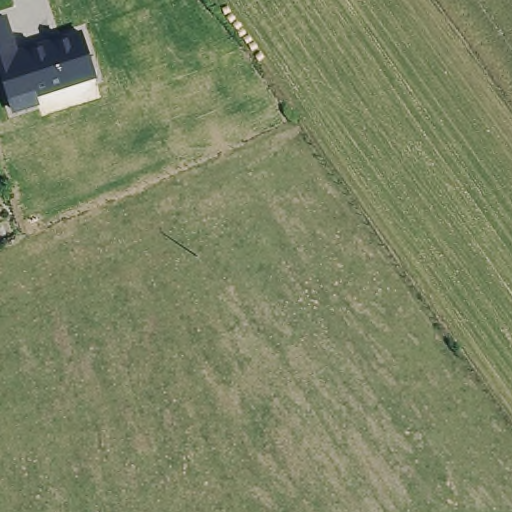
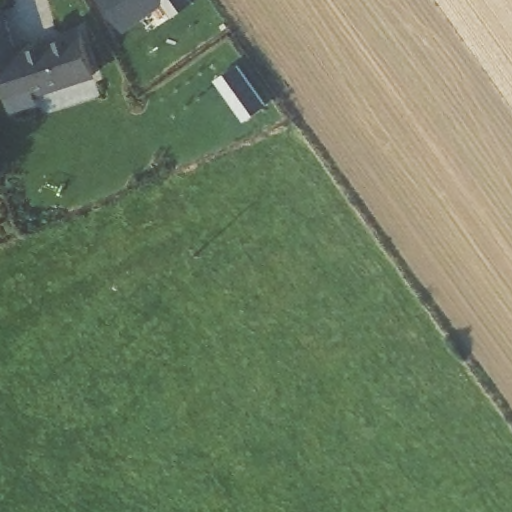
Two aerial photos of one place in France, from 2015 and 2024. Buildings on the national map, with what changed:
new [(171,16),(163,5),(123,31),(101,0),(192,0),(193,1),(171,16)]
unchanged [(39,103),(13,111),(0,80),(0,81),(0,16),(7,14),(18,50),(82,29),(96,76),(37,96),(39,103)]

